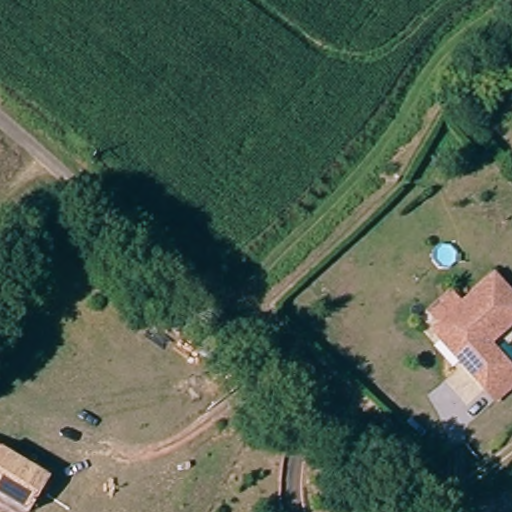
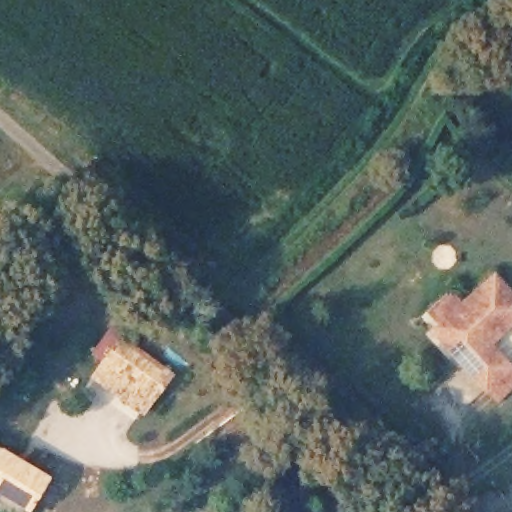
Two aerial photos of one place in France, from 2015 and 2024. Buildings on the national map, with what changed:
unchanged [(485,390),(464,364),(436,329),(467,304),(499,278),(512,294),(512,327),(490,344),(510,369),(512,372),(512,387),(494,402),(485,390)]
new [(89,379),(102,360),(93,352),(109,330),(120,338),(123,333),(175,375),(143,416),(89,379)]
unchanged [(49,480),(29,512),(20,512),(0,499),(0,451),(49,480)]
unchanged [(498,463),(493,467),(490,462),(495,458),(498,463)]

